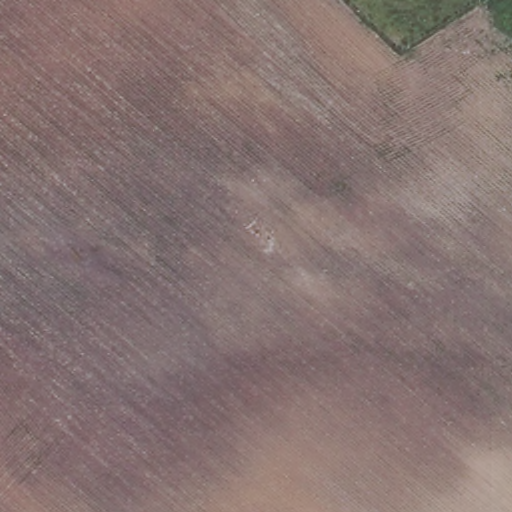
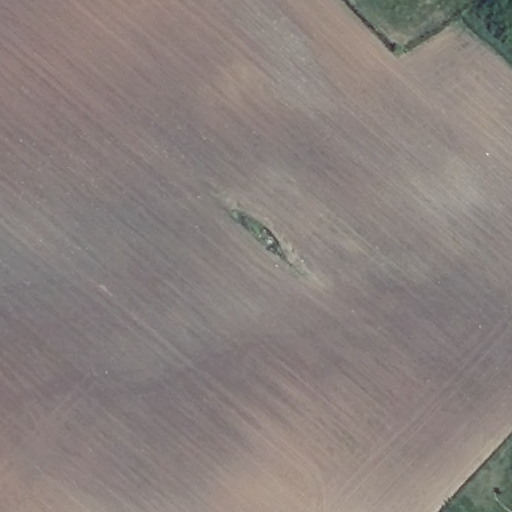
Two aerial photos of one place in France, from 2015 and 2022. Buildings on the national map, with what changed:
[]

